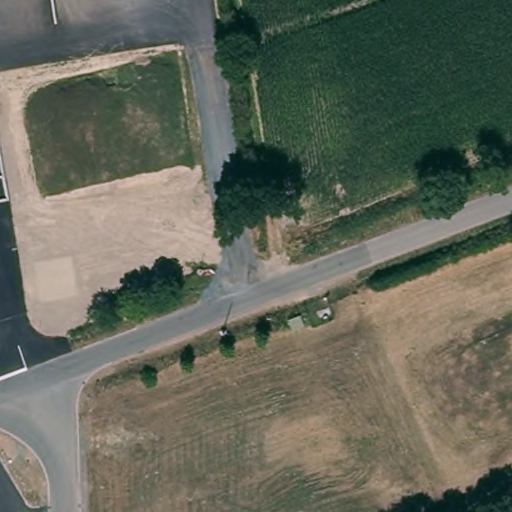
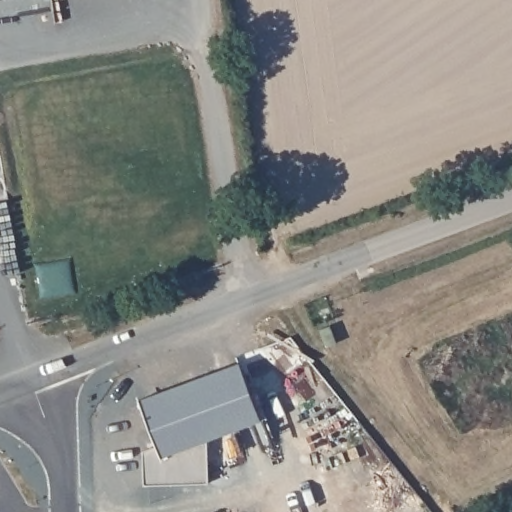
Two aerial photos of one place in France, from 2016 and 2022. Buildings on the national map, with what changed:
new [(239,363),(260,420),(207,440),(209,484),(144,486),(143,452),(155,447),(139,401),(239,363)]

